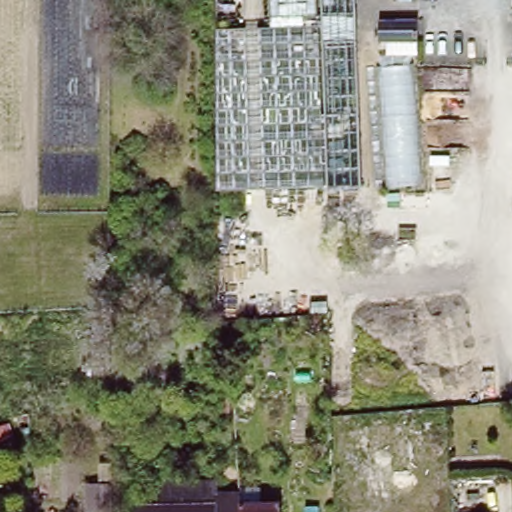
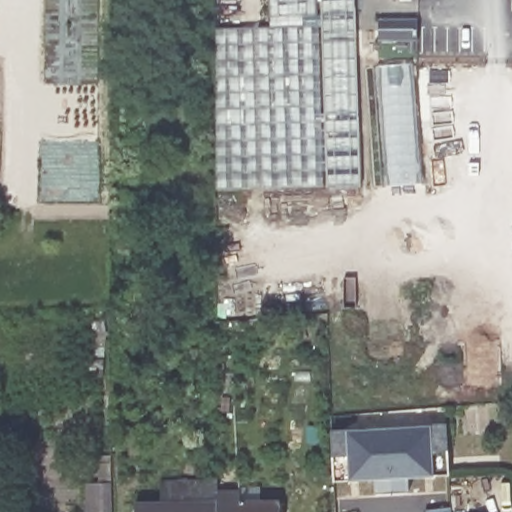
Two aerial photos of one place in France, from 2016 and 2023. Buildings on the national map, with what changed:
unchanged [(315,14),(267,15),(267,0),(314,0),(315,14)]
unchanged [(351,29),(355,29),(356,57),(353,57),(354,83),(325,83),(321,0),(350,0),(351,29)]
unchanged [(418,20),(417,40),(380,41),(380,20),(418,20)]
unchanged [(315,27),(317,83),(322,187),(255,189),(216,191),(216,30),(255,29),(315,27)]
unchanged [(375,57),(407,54),(416,182),(383,185),(375,57)]
unchanged [(354,83),(358,184),(330,185),(325,83),(354,83)]
demolished [(383,417),(385,446),(362,448),(360,418),(383,417)]
new [(450,475),(433,477),(409,478),(410,493),(373,495),(372,479),(349,480),(333,482),(331,457),(329,430),(345,429),(446,423),(448,450),(450,475)]
unchanged [(222,491),(222,512),(139,512),(139,503),(166,502),(165,480),(221,479),(222,491)]
unchanged [(110,512),(88,512),(87,487),(109,486),(110,512)]
unchanged [(285,512),(222,512),(222,491),(245,490),(245,500),(285,499),(285,512)]
new [(450,507),(451,512),(425,512),(425,509),(450,507)]

